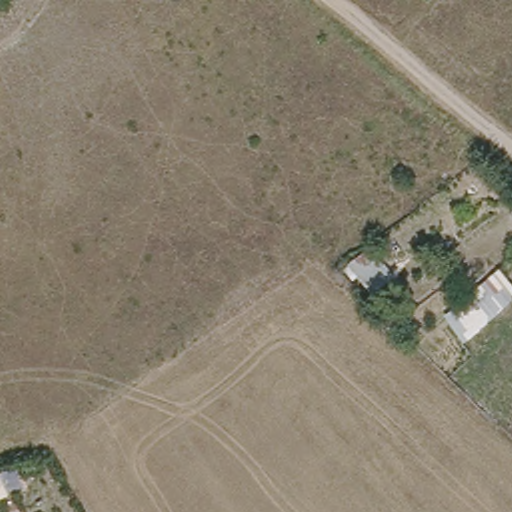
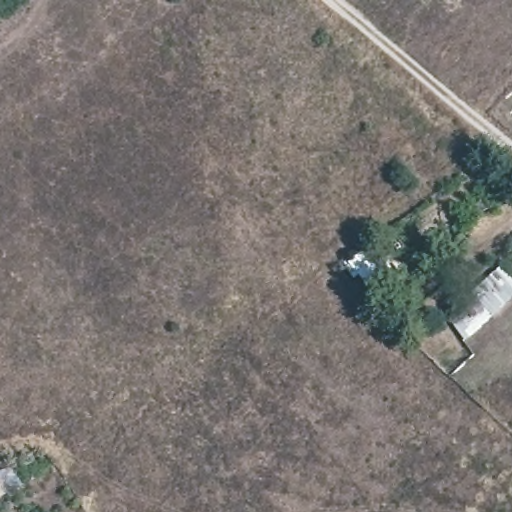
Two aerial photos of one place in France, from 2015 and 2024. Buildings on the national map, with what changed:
unchanged [(386,270),(364,287),(344,264),(366,246),(386,270)]
unchanged [(512,281),(512,299),(493,316),(473,295),(503,271),(512,281)]
unchanged [(469,298),(481,313),(472,320),(474,325),(460,335),(446,316),(469,298)]

